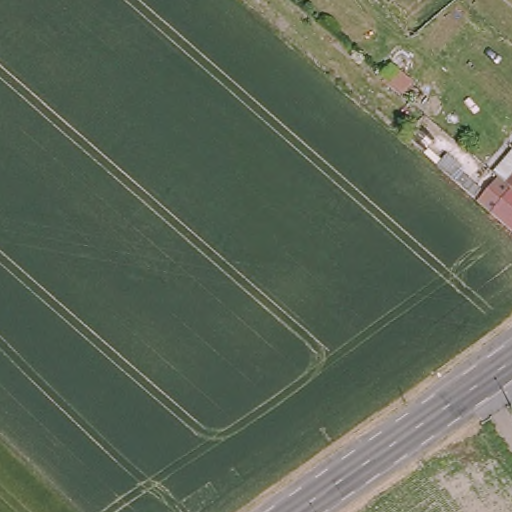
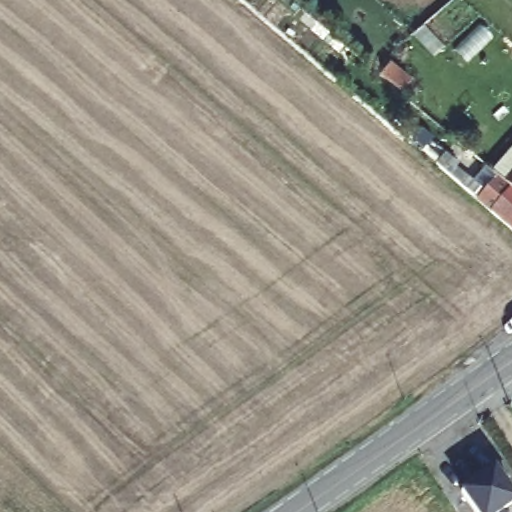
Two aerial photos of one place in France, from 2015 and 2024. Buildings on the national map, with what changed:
unchanged [(401,59),(418,74),(403,89),(386,74),(401,59)]
unchanged [(437,161),(449,148),(462,159),(459,162),(484,183),(474,193),(437,161)]
unchanged [(512,175),(512,182),(509,179),(512,175)]
unchanged [(512,182),(512,225),(480,198),(487,190),(490,193),(505,176),(509,179),(512,182)]
new [(495,467),(512,492),(512,507),(505,512),(474,512),(459,492),(495,467)]

